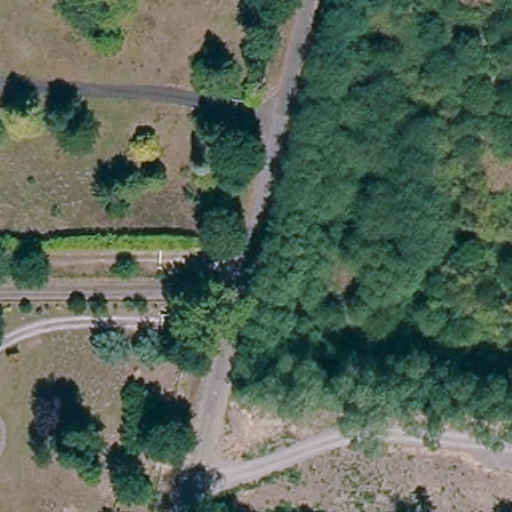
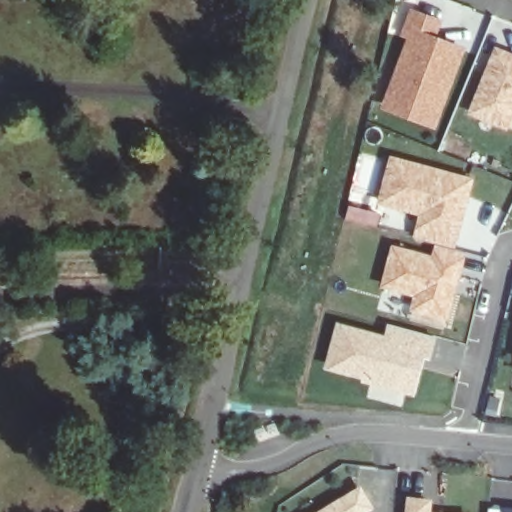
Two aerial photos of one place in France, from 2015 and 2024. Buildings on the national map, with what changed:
new [(405,38),(387,31),(394,6),(400,8),(397,19),(402,21),(408,4),(443,18),(437,34),(468,45),(435,129),(379,109),(405,38)]
new [(494,44),(512,51),(512,119),(508,130),(464,114),(494,44)]
new [(389,154),(474,178),(454,249),(433,243),(411,236),(416,215),(375,204),(389,154)]
new [(349,204),(381,214),(376,229),(344,221),(349,204)]
new [(391,243),(430,254),(433,243),(454,249),(466,253),(447,324),(408,313),(413,296),(379,287),(391,243)]
new [(335,322),(384,334),(387,323),(436,337),(430,359),(424,357),(413,397),(404,394),(401,407),(366,398),(369,384),(322,369),(335,322)]
new [(351,493),(362,509),(358,512),(321,512),(351,493)]
new [(406,495),(432,497),(431,512),(404,512),(406,495)]
new [(503,507),(512,508),(512,512),(502,512),(503,507)]

